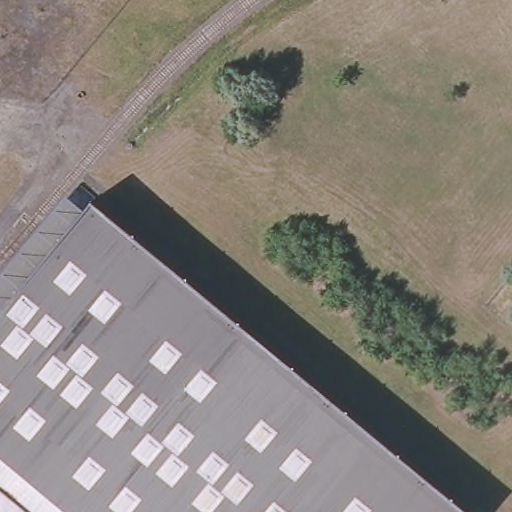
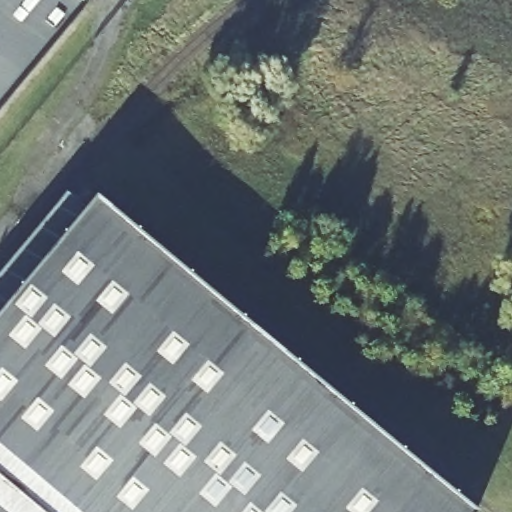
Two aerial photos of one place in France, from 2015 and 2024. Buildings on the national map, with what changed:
new [(76,0),(78,2),(0,97),(0,0),(76,0)]
unchanged [(467,512),(0,512),(0,313),(92,201),(467,512)]

